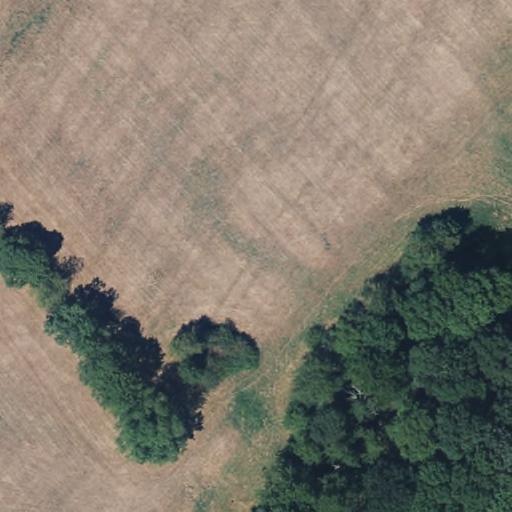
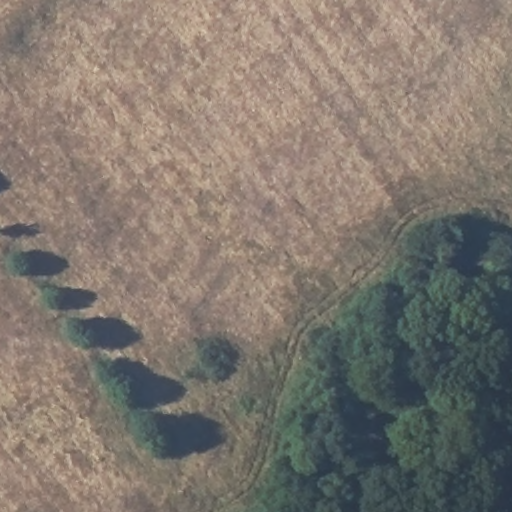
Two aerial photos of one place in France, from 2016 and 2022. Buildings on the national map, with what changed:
unchanged [(471,437),(452,483),(431,473),(447,428),(471,437)]

